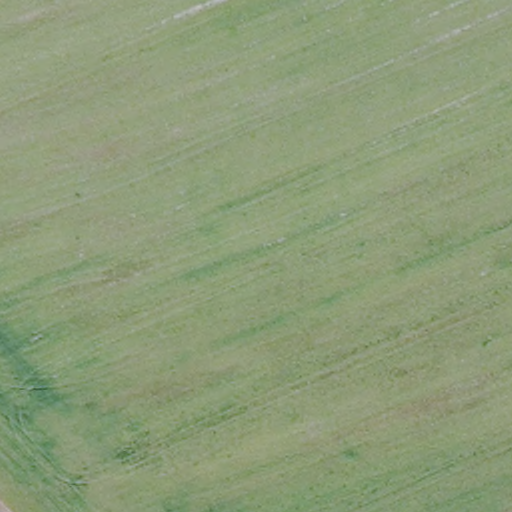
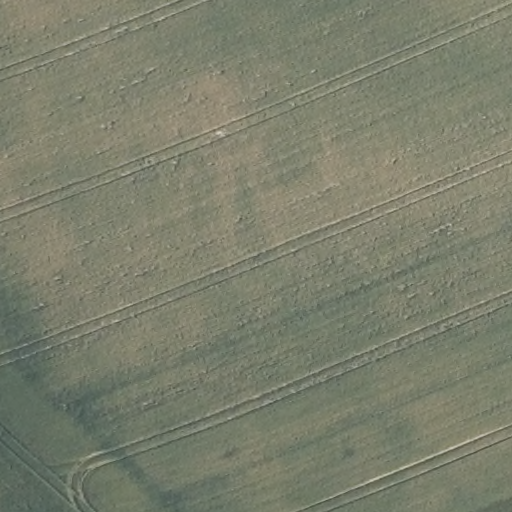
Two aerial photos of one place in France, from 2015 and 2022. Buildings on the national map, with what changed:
[]

